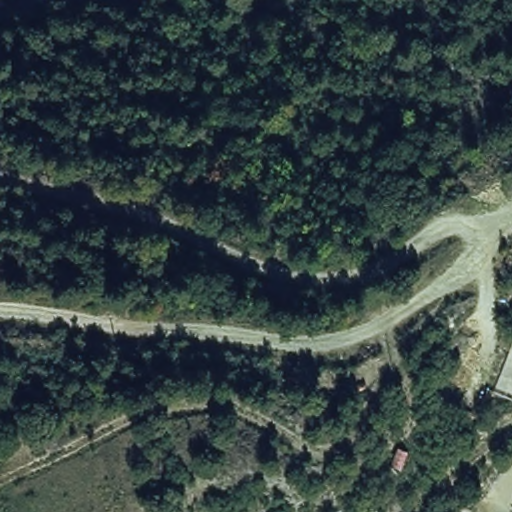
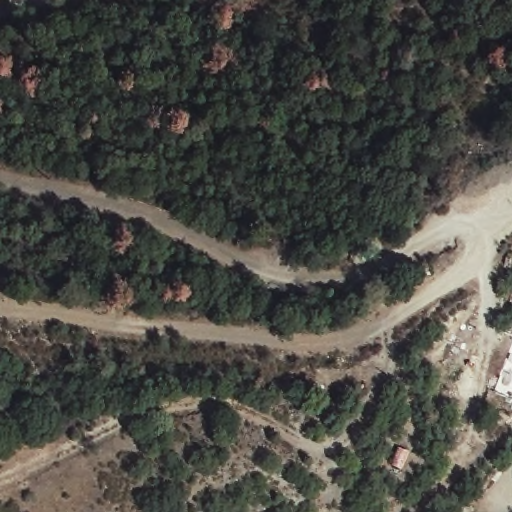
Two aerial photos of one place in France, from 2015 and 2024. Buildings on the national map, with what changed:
unchanged [(493,394),(512,341),(512,400),(493,394)]

